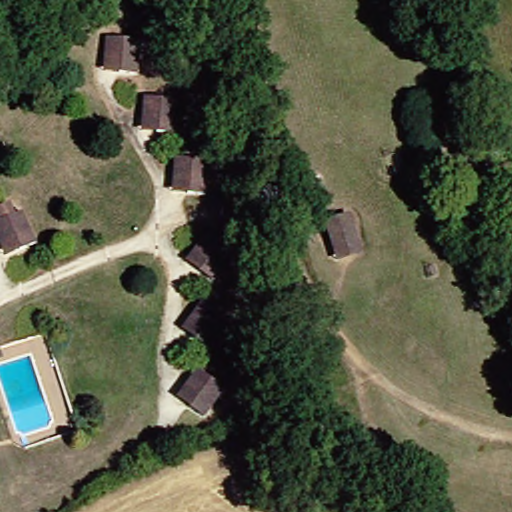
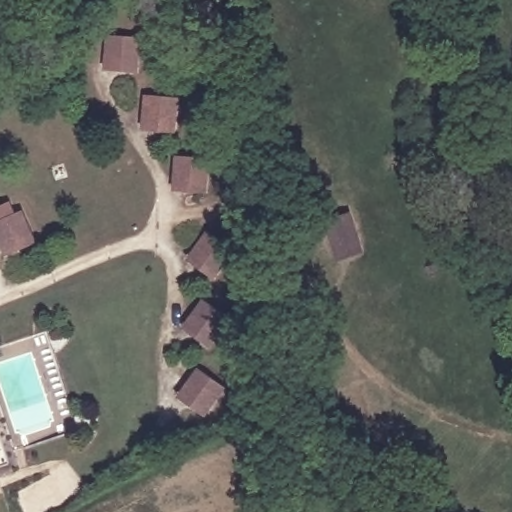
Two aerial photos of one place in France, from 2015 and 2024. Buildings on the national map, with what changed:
unchanged [(106,61),(106,38),(139,40),(137,73),(122,73),(106,72),(106,61)]
unchanged [(139,121),(140,99),(174,101),(172,132),(155,131),(138,130),(139,121)]
unchanged [(169,180),(170,156),(202,158),(201,189),(185,188),(168,187),(169,180)]
unchanged [(0,251),(0,209),(3,214),(12,210),(30,242),(17,249),(3,256),(0,251)]
unchanged [(346,213),(362,256),(333,264),(319,225),(346,213)]
unchanged [(192,257),(205,235),(231,251),(213,281),(201,273),(187,265),(192,257)]
unchanged [(182,321),(196,297),(223,314),(203,347),(190,338),(176,330),(182,321)]
unchanged [(183,388),(194,368),(218,383),(202,413),(187,404),(177,397),(183,388)]

